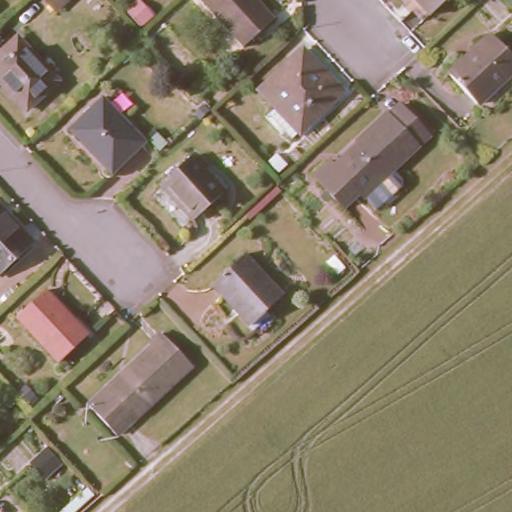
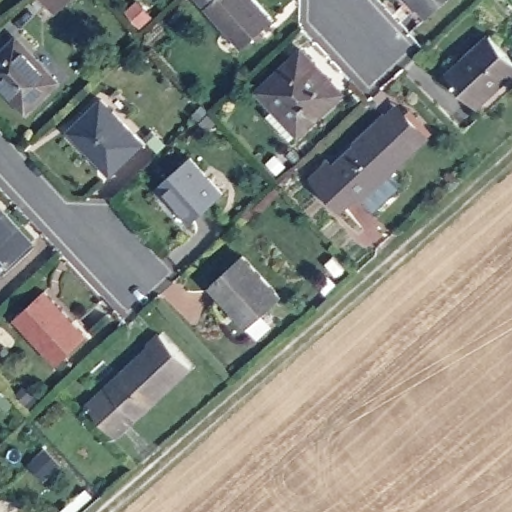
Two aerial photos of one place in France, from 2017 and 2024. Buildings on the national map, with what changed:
unchanged [(50,6),(44,0),(73,0),(57,15),(50,6)]
unchanged [(280,18),(246,49),(200,0),(263,0),(280,18)]
unchanged [(430,17),(413,0),(447,0),(430,17)]
unchanged [(22,34),(62,77),(30,105),(0,72),(0,54),(22,34)]
unchanged [(512,52),(512,74),(480,104),(452,74),(496,35),(512,52)]
unchanged [(309,50),(347,92),(294,139),(270,113),(276,107),(262,92),(309,50)]
unchanged [(104,101),(141,143),(110,171),(72,131),(104,101)]
unchanged [(363,195),(360,190),(342,205),(312,175),(329,159),(334,164),(389,113),(401,102),(408,110),(430,134),(363,195)]
unchanged [(188,158),(220,194),(190,222),(157,187),(188,158)]
unchanged [(32,245),(0,273),(0,210),(32,245)]
unchanged [(245,256),(282,297),(251,324),(213,284),(245,256)]
unchanged [(49,287),(90,332),(59,360),(17,316),(49,287)]
unchanged [(195,365),(116,436),(88,406),(153,347),(148,342),(162,330),(195,365)]

